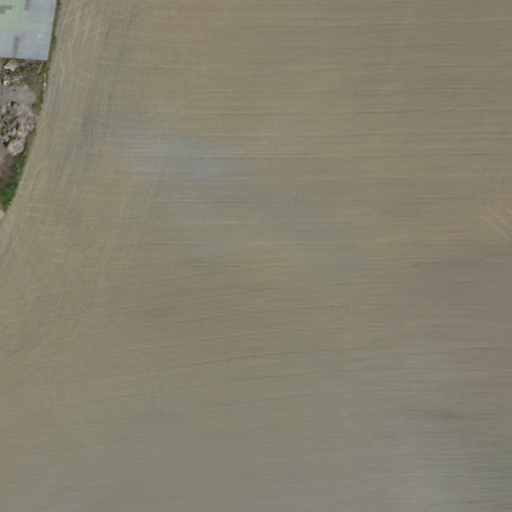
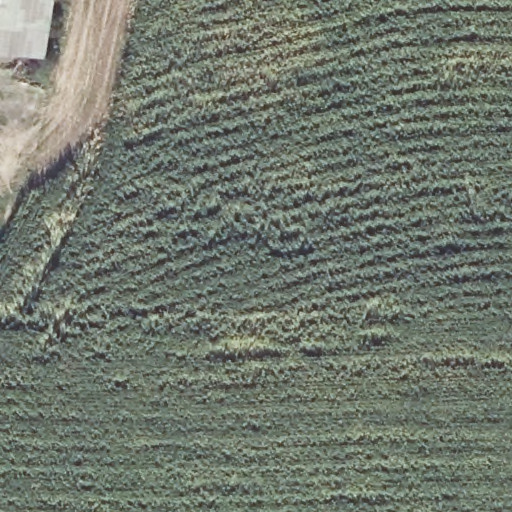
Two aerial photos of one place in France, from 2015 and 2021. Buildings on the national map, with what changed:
unchanged [(0,0),(53,0),(45,54),(0,47),(0,0)]

